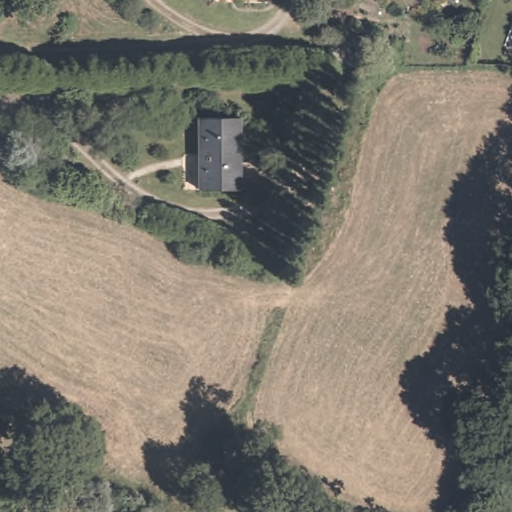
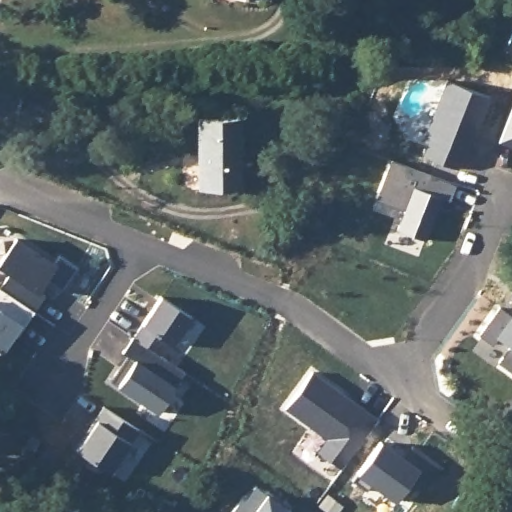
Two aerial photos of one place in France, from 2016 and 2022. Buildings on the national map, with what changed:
new [(427,142),(421,140),(443,78),(489,95),(466,158),(462,156),(457,169),(422,156),(427,142)]
new [(512,147),(499,140),(512,104),(512,147)]
unchanged [(199,184),(203,161),(210,114),(250,120),(239,185),(238,191),(202,185),(199,185),(199,184)]
new [(389,159),(454,181),(449,196),(445,195),(429,241),(397,229),(403,207),(375,198),(389,159)]
new [(10,272),(0,266),(0,259),(16,236),(55,261),(60,256),(76,266),(61,288),(46,279),(38,291),(43,295),(3,353),(0,352),(0,285),(10,272)]
new [(134,360),(122,353),(140,325),(160,295),(191,315),(172,345),(165,341),(158,354),(183,371),(174,383),(156,412),(117,388),(134,360)]
new [(511,312),(512,311),(512,373),(498,363),(509,347),(495,337),(490,344),(477,335),(499,304),(511,312)]
new [(311,371),(376,418),(341,469),(316,452),(325,437),(283,409),(311,371)]
new [(141,431),(112,474),(73,447),(101,405),(141,431)]
new [(356,473),(381,439),(401,454),(410,443),(443,465),(424,494),(407,485),(395,501),(371,485),(366,491),(352,480),(356,473)]

